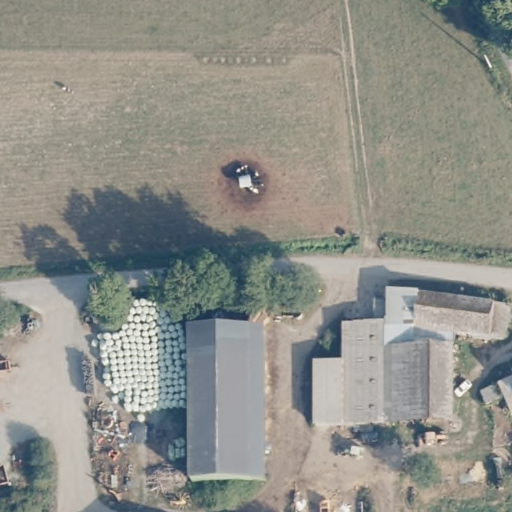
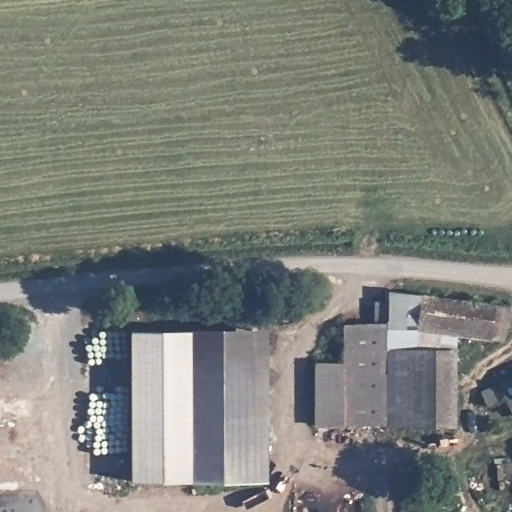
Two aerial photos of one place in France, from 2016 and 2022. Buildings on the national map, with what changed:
unchanged [(314,355),(345,354),(347,321),(376,321),(376,302),(387,302),(388,296),(409,297),(408,331),(460,335),(460,348),(391,346),(391,321),(386,321),(385,419),(312,417),(314,355)]
unchanged [(480,336),(460,335),(408,331),(409,297),(481,300),(480,336)]
unchanged [(512,338),(480,336),(481,300),(512,301),(512,338)]
unchanged [(196,354),(197,323),(258,324),(256,355),(196,354)]
new [(129,330),(197,328),(196,354),(192,473),(191,482),(131,481),(129,330)]
unchanged [(438,421),(390,421),(391,346),(460,348),(459,416),(459,422),(438,421)]
unchanged [(251,473),(192,473),(196,354),(256,355),(251,473)]
unchanged [(485,400),(479,385),(512,373),(512,395),(510,390),(485,400)]

